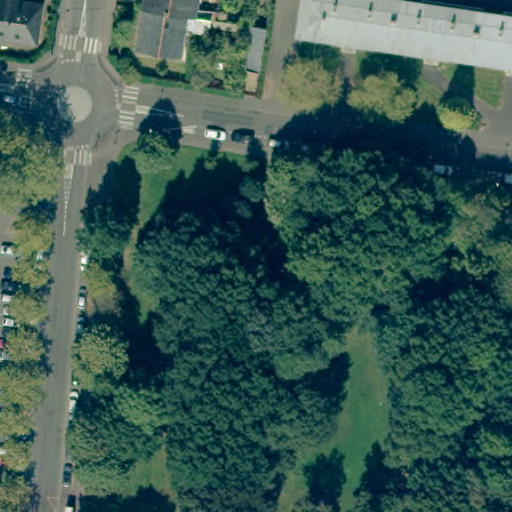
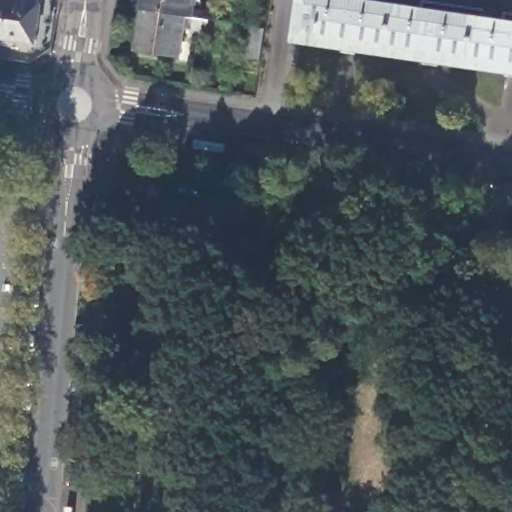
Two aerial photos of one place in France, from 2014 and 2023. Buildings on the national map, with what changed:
unchanged [(0,28),(0,0),(33,0),(36,0),(32,32),(0,28)]
unchanged [(191,12),(185,11),(141,4),(141,0),(193,0),(191,12)]
unchanged [(512,76),(507,75),(507,70),(439,60),(438,65),(423,63),(424,58),(356,48),(356,52),(342,51),(343,46),(298,40),(305,0),(365,0),(512,22),(512,76)]
unchanged [(185,11),(179,51),(134,44),(141,4),(185,11)]
unchanged [(205,27),(192,25),(194,12),(207,14),(205,27)]
unchanged [(258,72),(243,70),(250,26),(264,28),(258,72)]

